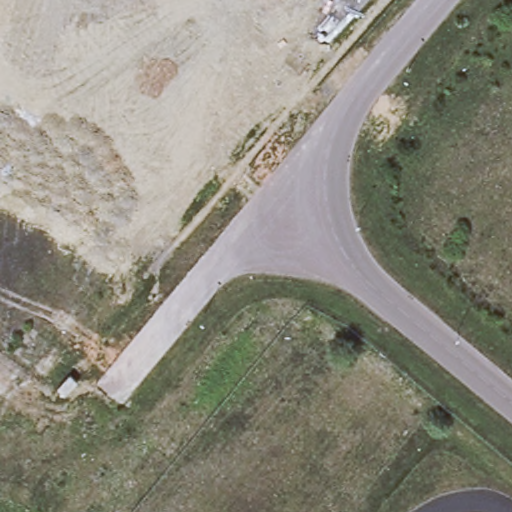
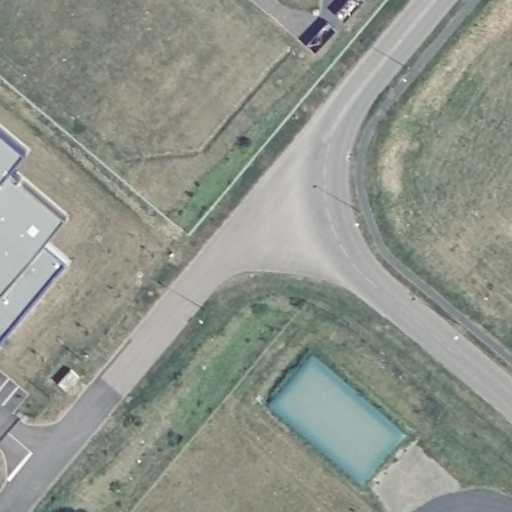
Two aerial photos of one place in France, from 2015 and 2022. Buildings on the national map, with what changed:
new [(10,176),(67,225),(46,249),(67,266),(0,349),(0,137),(25,156),(10,176)]
unchanged [(79,382),(67,395),(59,388),(72,375),(79,382)]

